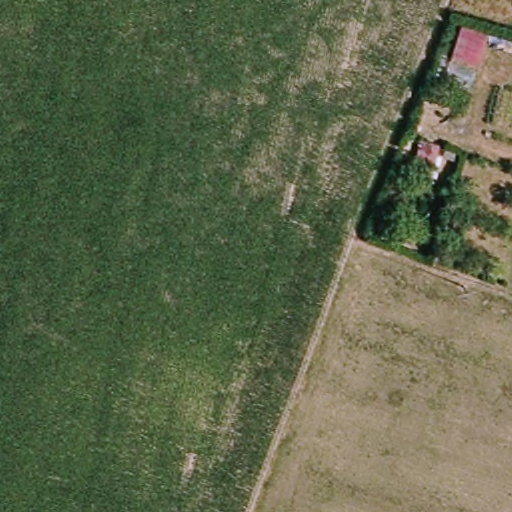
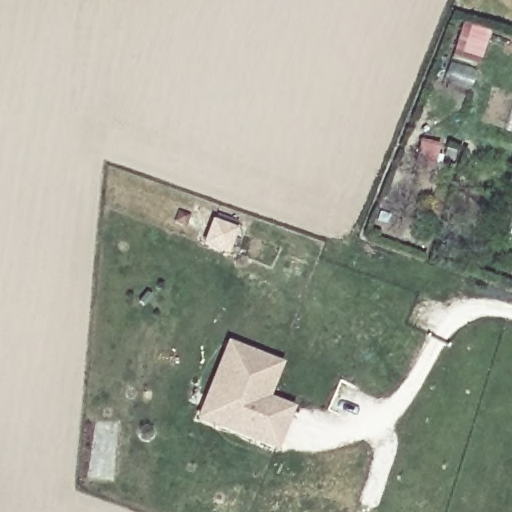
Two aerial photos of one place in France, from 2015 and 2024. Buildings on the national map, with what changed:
unchanged [(461,25),(490,34),(480,68),(451,58),(461,25)]
new [(215,222),(236,230),(229,251),(208,243),(215,222)]
new [(231,343),(282,363),(269,398),(276,400),(293,408),(287,423),(278,448),(223,426),(202,418),(209,401),(231,343)]

